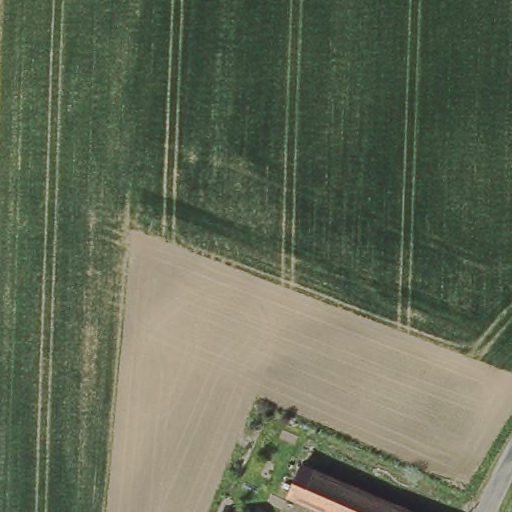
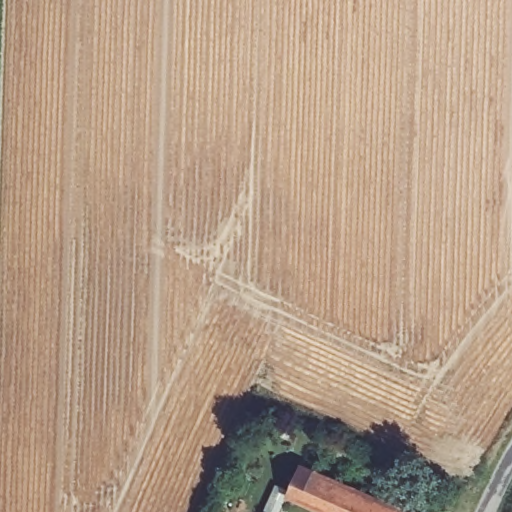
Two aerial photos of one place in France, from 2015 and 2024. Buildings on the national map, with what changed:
unchanged [(298,498),(292,512),(238,512),(266,447),(317,468),(323,454),(457,512),(330,512),(298,498)]

